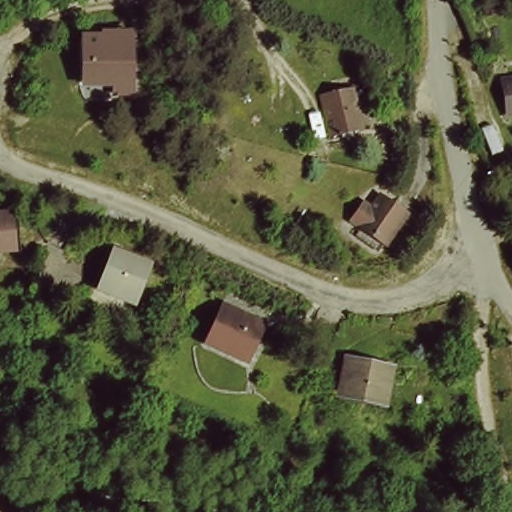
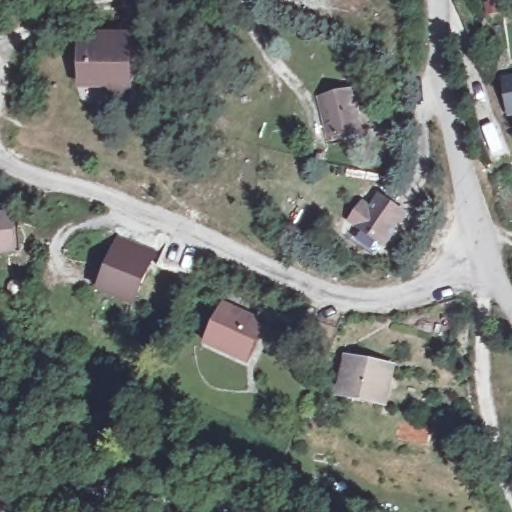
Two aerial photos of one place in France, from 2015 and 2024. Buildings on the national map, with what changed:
unchanged [(109,96),(109,82),(94,82),(81,82),(81,64),(81,35),(128,36),(128,82),(128,96),(109,96)]
unchanged [(504,80),(512,79),(512,113),(509,114),(504,80)]
unchanged [(362,130),(340,137),(328,102),(350,95),(362,130)]
unchanged [(381,246),(358,231),(381,197),(403,212),(381,246)]
unchanged [(10,245),(0,248),(0,219),(5,218),(10,245)]
unchanged [(147,267),(133,300),(99,286),(113,252),(147,267)]
unchanged [(255,327),(244,355),(209,341),(219,313),(255,327)]
unchanged [(339,402),(346,367),(387,375),(382,402),(364,399),(363,406),(339,402)]

